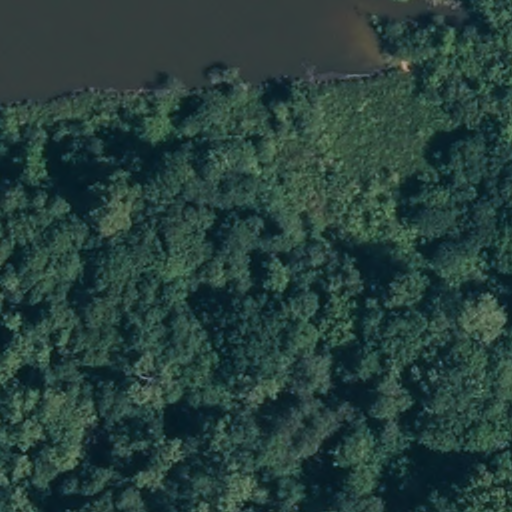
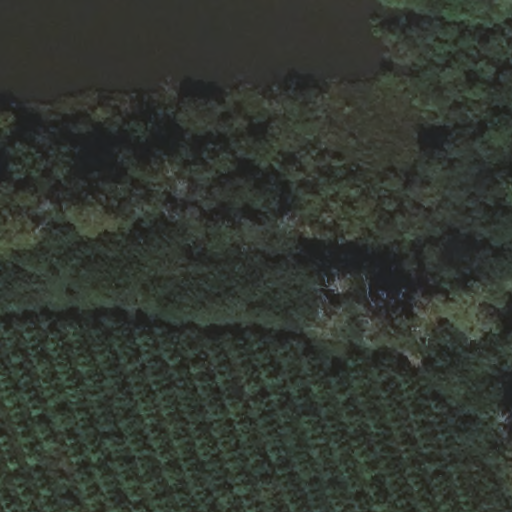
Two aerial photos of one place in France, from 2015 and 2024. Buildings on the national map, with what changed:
unchanged [(507,3),(507,0),(512,0),(512,3),(507,3)]

